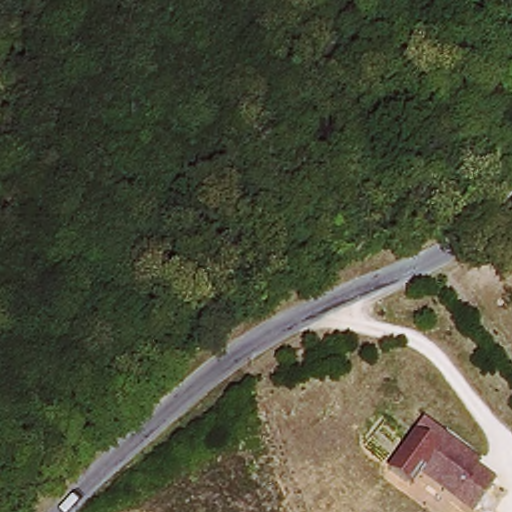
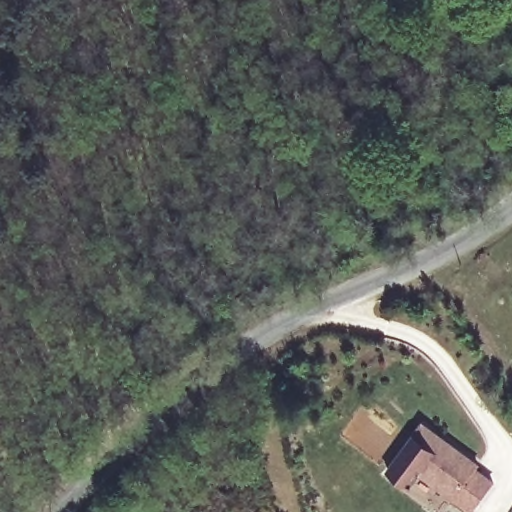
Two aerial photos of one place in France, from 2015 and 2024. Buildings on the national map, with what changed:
unchanged [(456,494),(418,467),(405,486),(387,474),(422,425),(478,466),(475,470),(492,484),(473,512),(471,512),(453,498),(456,494)]

